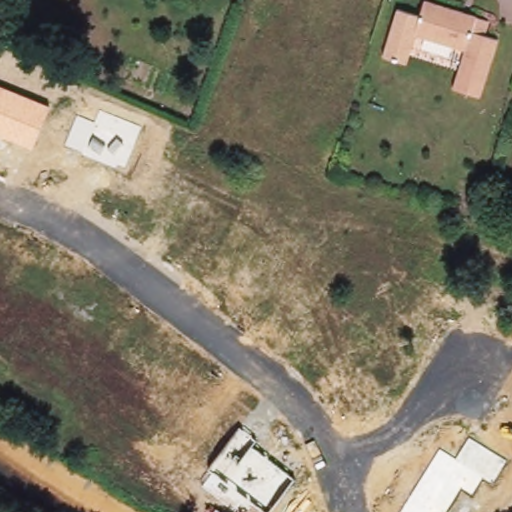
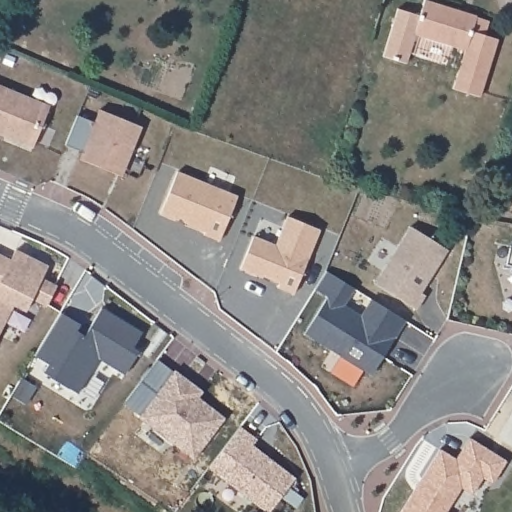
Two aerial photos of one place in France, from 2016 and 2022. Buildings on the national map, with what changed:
unchanged [(475,18),(488,22),(484,37),(497,41),(479,101),(453,93),(464,53),(413,35),(424,0),(427,0),(476,17),(475,18)]
unchanged [(406,62),(383,55),(396,9),(419,15),(413,35),(406,62)]
unchanged [(49,106),(32,148),(0,134),(0,87),(49,106)]
new [(116,169),(81,154),(81,153),(64,145),(76,115),(94,123),(99,110),(141,127),(124,168),(123,172),(116,169)]
new [(176,172),(237,197),(218,242),(203,235),(204,232),(160,214),(176,172)]
new [(253,235),(275,244),(287,216),(319,229),(293,294),(277,287),(279,282),(262,275),(261,277),(240,268),(253,235)]
new [(410,227),(448,250),(421,294),(425,296),(416,310),(374,284),(410,227)]
new [(512,246),(512,265),(506,264),(510,245),(512,246)]
new [(10,260),(15,249),(47,266),(41,278),(56,285),(45,307),(30,299),(24,312),(13,305),(0,331),(0,255),(10,260)]
new [(371,375),(304,334),(327,297),(314,289),(325,271),(353,289),(343,305),(360,317),(371,299),(405,321),(394,339),(382,357),(371,375)]
new [(59,313),(87,329),(100,308),(141,333),(132,348),(138,352),(124,375),(97,359),(76,394),(42,373),(47,364),(33,356),(59,313)]
new [(177,373),(192,384),(202,393),(197,399),(224,419),(194,458),(123,403),(156,360),(177,373)]
unchanged [(240,426),(256,439),(252,445),(295,479),(268,512),(266,512),(209,468),(240,426)]
new [(421,479),(439,449),(456,459),(469,438),(506,461),(492,484),(482,478),(471,495),(460,488),(445,512),(401,512),(415,489),(421,479)]

